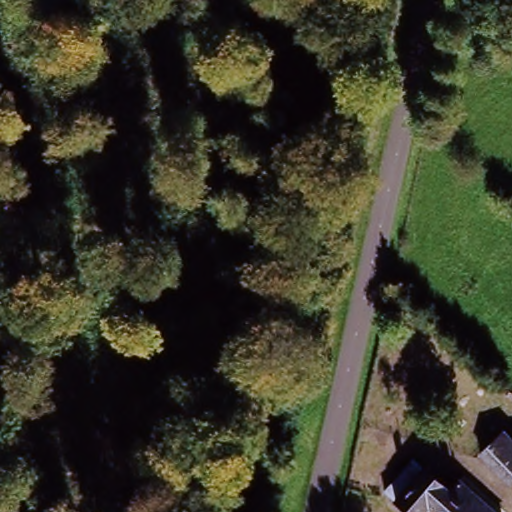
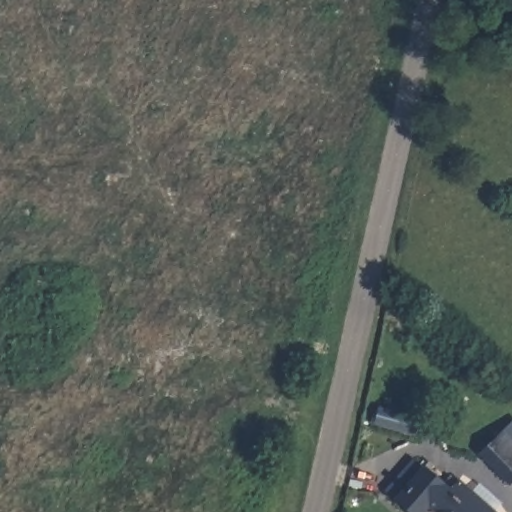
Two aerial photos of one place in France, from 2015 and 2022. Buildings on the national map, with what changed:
unchanged [(509,494),(475,457),(497,437),(505,446),(512,439),(512,491),(509,494)]
unchanged [(396,507),(385,497),(418,461),(430,471),(462,502),(471,491),(493,512),(429,512),(402,512),(396,507)]

